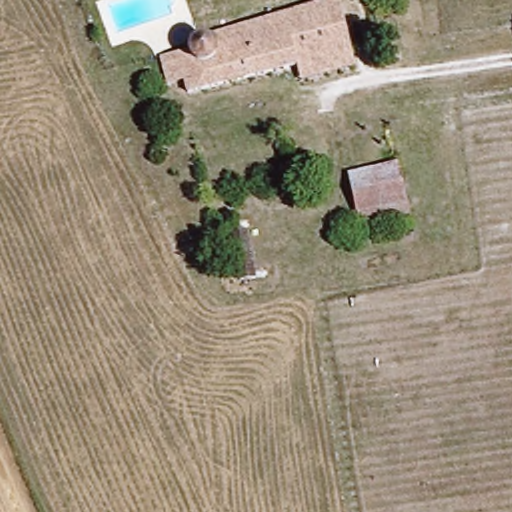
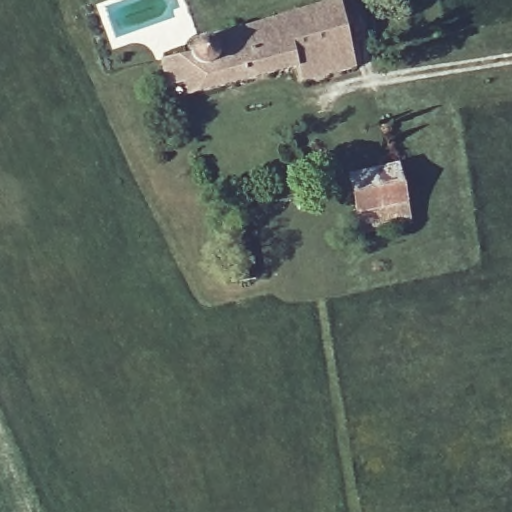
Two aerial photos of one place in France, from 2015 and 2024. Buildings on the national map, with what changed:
unchanged [(306,81),(303,67),(188,90),(179,48),(209,42),(197,36),(205,23),(218,28),(341,3),(353,57),(356,71),(306,81)]
unchanged [(387,225),(356,230),(348,176),(401,168),(409,222),(387,225)]
unchanged [(216,215),(234,213),(240,271),(262,268),(264,284),(224,288),(216,215)]

